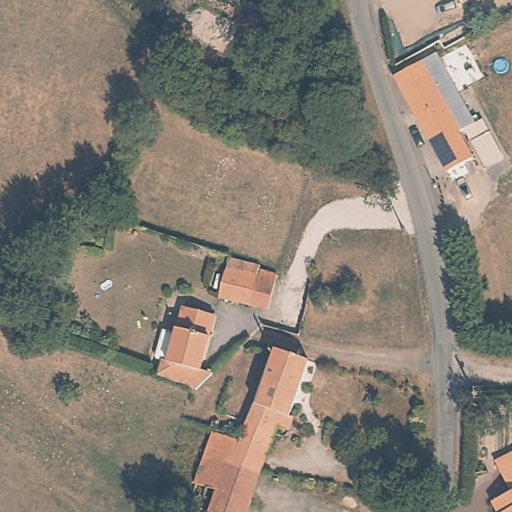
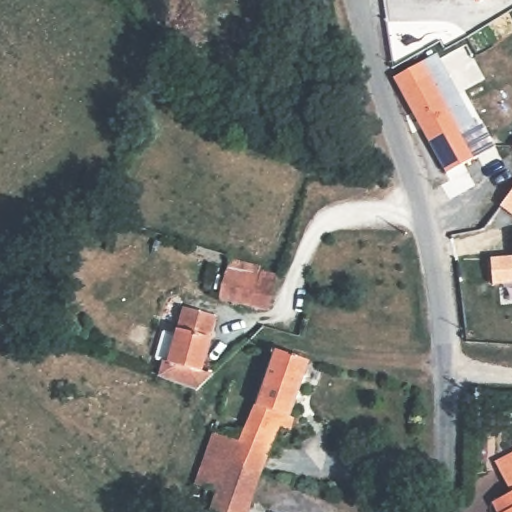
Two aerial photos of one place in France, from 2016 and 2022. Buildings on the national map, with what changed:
unchanged [(428,143),(413,115),(404,99),(391,75),(434,51),(447,74),(455,89),(460,98),(470,93),(472,119),(474,124),(482,119),(505,160),(486,170),(463,129),(460,131),(467,150),(440,165),(428,143)]
new [(498,207),(512,187),(512,216),(498,207)]
new [(492,285),(489,258),(512,255),(512,282),(492,285)]
unchanged [(263,267),(263,271),(278,275),(270,309),(252,304),(252,309),(220,299),(231,259),(263,267)]
unchanged [(166,366),(161,362),(169,333),(178,335),(184,308),(215,314),(199,372),(211,377),(198,389),(165,377),(166,366)]
unchanged [(297,391),(265,380),(277,349),(308,360),(297,391)]
unchanged [(247,426),(265,380),(297,391),(289,414),(295,417),(292,430),(278,428),(275,437),(247,426)]
unchanged [(232,462),(241,441),(247,426),(275,437),(261,474),(232,462)]
unchanged [(210,512),(216,494),(195,485),(214,433),(241,441),(232,462),(261,474),(247,512),(212,512),(210,512)]
unchanged [(502,511),(494,498),(510,488),(498,469),(512,460),(512,512),(501,512),(502,511)]

